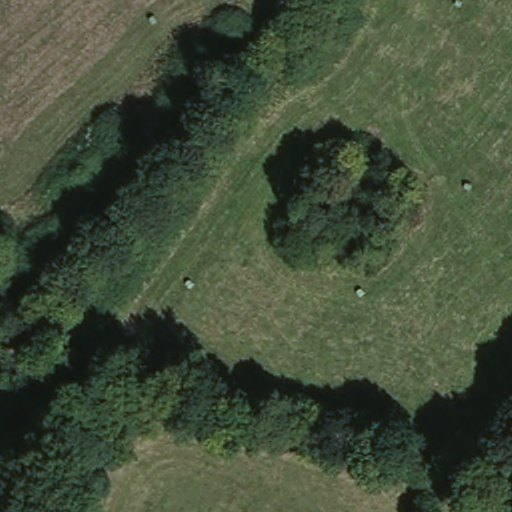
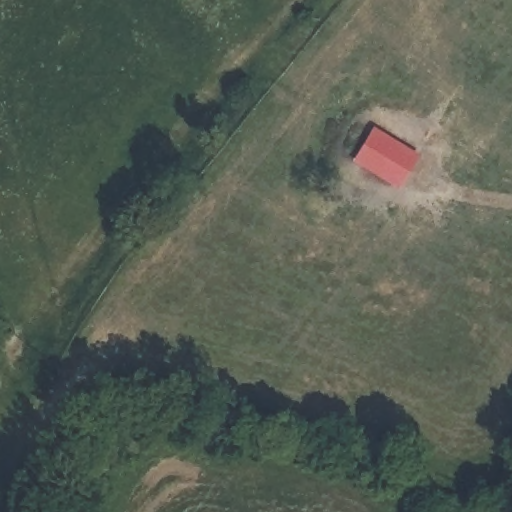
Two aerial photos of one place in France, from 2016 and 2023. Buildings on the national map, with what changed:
new [(419,154),(398,190),(352,161),(372,126),(419,154)]

